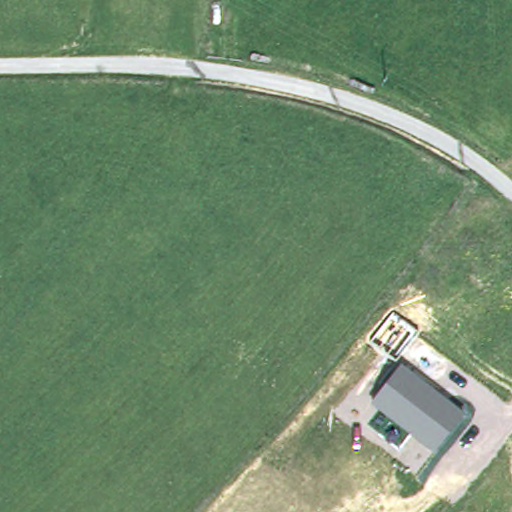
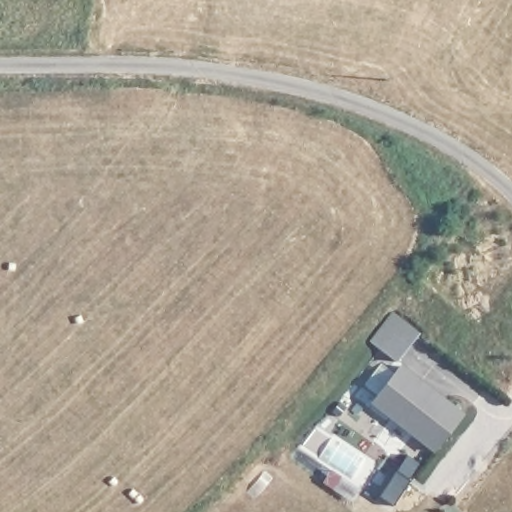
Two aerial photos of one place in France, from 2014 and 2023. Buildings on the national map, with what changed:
new [(370,346),(392,317),(419,340),(397,368),(370,346)]
unchanged [(466,413),(434,454),(372,404),(402,364),(466,413)]

